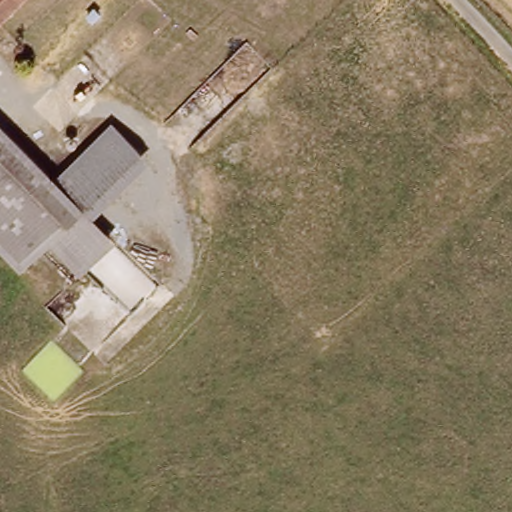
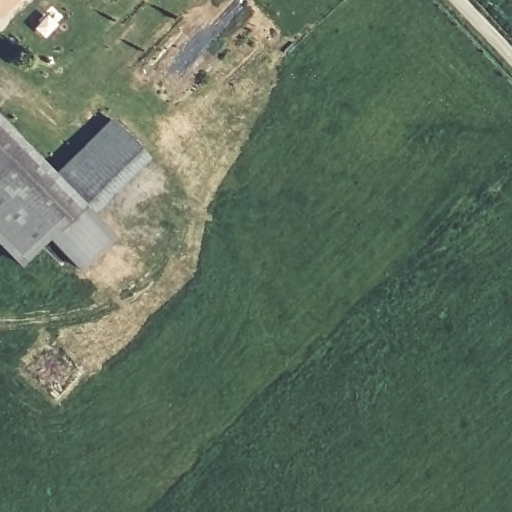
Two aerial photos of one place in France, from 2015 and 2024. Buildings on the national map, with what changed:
unchanged [(19,0),(0,19),(0,0),(19,0)]
unchanged [(6,126),(0,132),(0,120),(6,126)]
unchanged [(55,176),(110,121),(135,146),(80,199),(45,233),(16,260),(0,244),(0,132),(6,126),(55,176)]
unchanged [(135,146),(147,158),(92,211),(80,199),(135,146)]
unchanged [(112,233),(77,267),(45,233),(80,199),(92,211),(112,233)]

